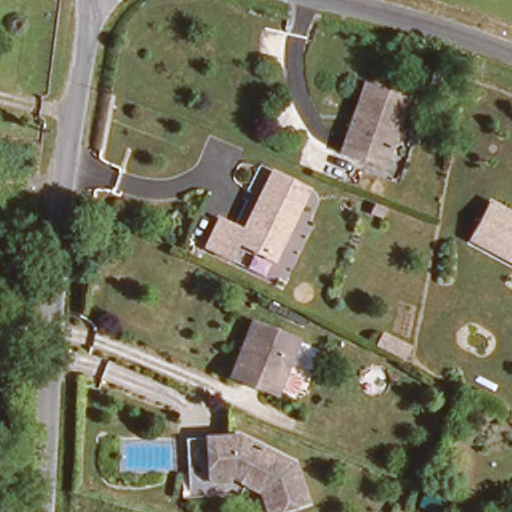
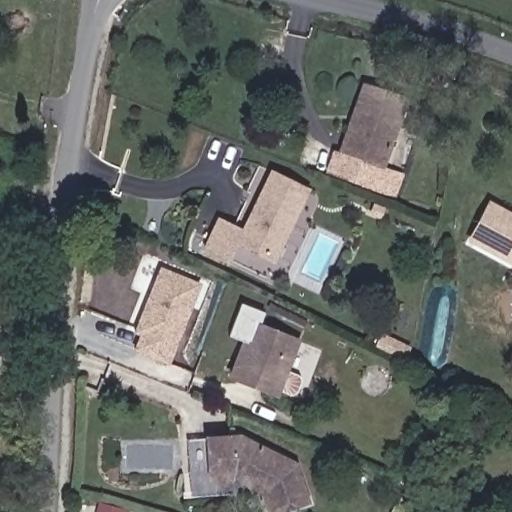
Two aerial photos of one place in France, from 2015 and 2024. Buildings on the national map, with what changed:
unchanged [(398,165),(385,161),(382,166),(334,151),(346,115),(357,81),(366,83),(405,96),(390,142),(404,147),(407,151),(403,163),(398,165)]
unchanged [(273,262),(236,244),(230,256),(205,245),(219,217),(244,228),(272,171),(308,188),(273,262)]
unchanged [(512,213),(512,267),(466,241),(488,201),(512,213)]
new [(133,330),(159,266),(202,283),(169,366),(132,351),(140,332),(133,330)]
unchanged [(301,347),(279,397),(234,378),(256,327),(301,347)]
unchanged [(428,357),(422,368),(395,355),(400,343),(428,357)]
unchanged [(297,458),(312,501),(278,512),(271,512),(263,493),(232,481),(226,486),(216,486),(206,476),(204,437),(240,436),(297,458)]
unchanged [(216,496),(182,496),(179,438),(204,437),(206,476),(216,486),(216,496)]

